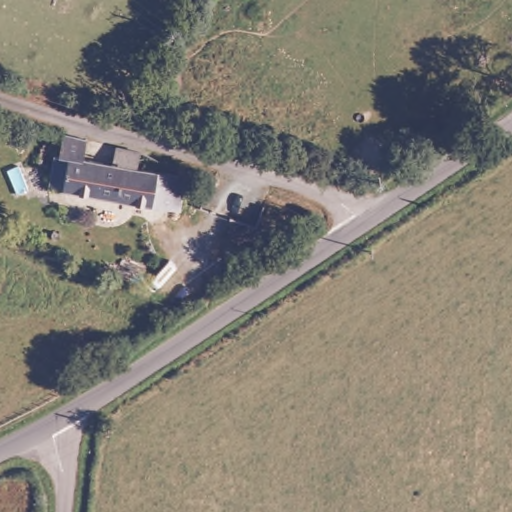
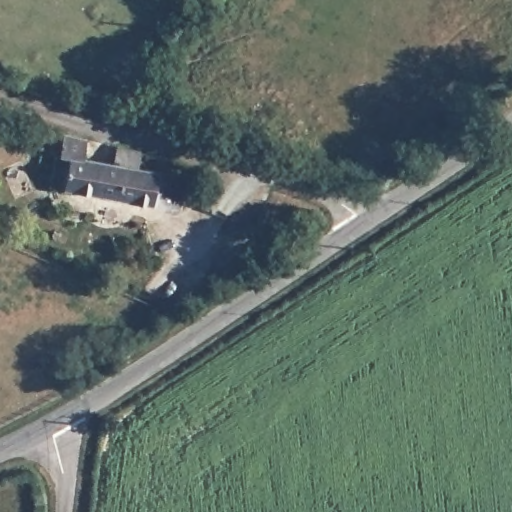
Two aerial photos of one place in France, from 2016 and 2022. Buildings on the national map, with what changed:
unchanged [(82,140),(79,160),(107,164),(111,147),(134,153),(131,169),(179,177),(173,210),(46,190),(50,160),(44,156),(41,153),(43,146),(48,142),(55,143),(58,133),(82,140)]

